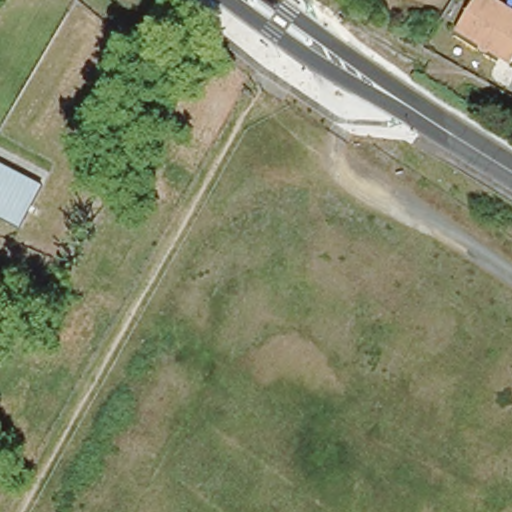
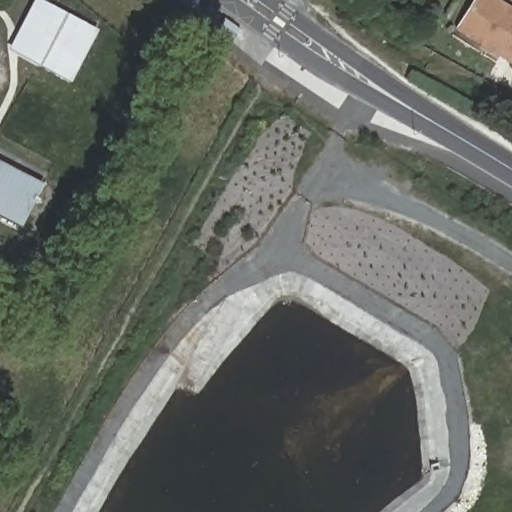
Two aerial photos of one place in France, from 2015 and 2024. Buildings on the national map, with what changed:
new [(8,49),(35,0),(41,0),(98,31),(71,83),(8,49)]
unchanged [(509,67),(453,32),(474,0),(487,0),(512,16),(512,62),(509,67)]
unchanged [(0,219),(0,161),(38,181),(16,227),(0,219)]

